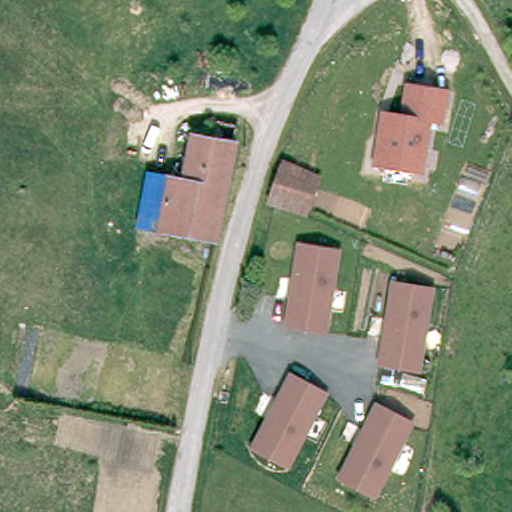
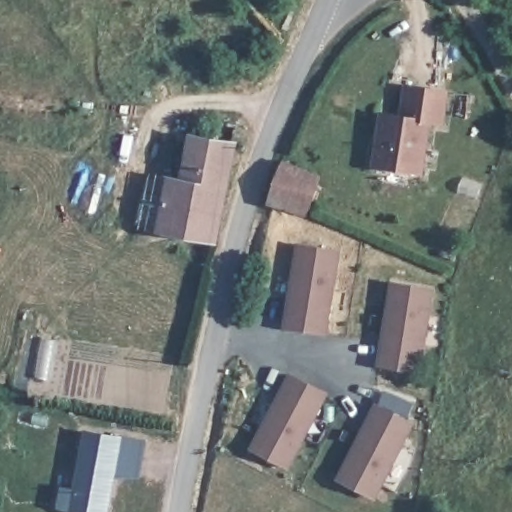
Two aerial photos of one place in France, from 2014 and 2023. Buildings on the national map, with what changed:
unchanged [(374,166),(379,109),(401,109),(403,84),(449,90),(443,126),(430,124),(423,174),(374,166)]
unchanged [(173,179),(187,181),(195,132),(213,136),(241,141),(220,240),(164,231),(173,179)]
unchanged [(326,166),(310,215),(266,204),(281,154),(326,166)]
unchanged [(149,210),(153,177),(173,179),(164,231),(150,230),(146,229),(149,210)]
unchanged [(327,333),(280,327),(296,241),(341,249),(327,333)]
unchanged [(390,278),(433,285),(422,370),(378,363),(390,278)]
unchanged [(288,372),(327,392),(288,466),(249,446),(288,372)]
unchanged [(376,497),(335,477),(374,403),(413,421),(376,497)]
new [(114,477),(107,512),(73,512),(69,510),(57,507),(60,485),(72,488),(84,428),(146,438),(139,478),(114,477)]

